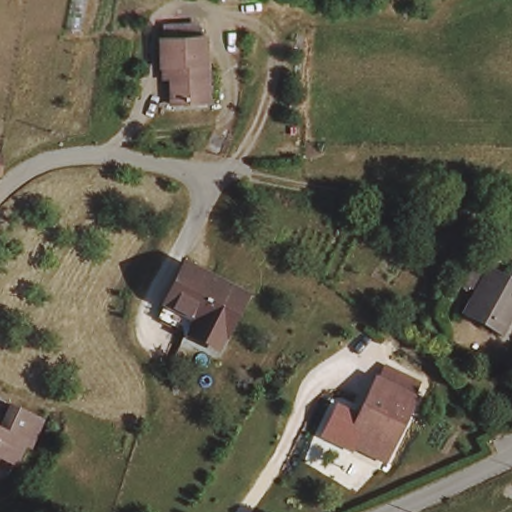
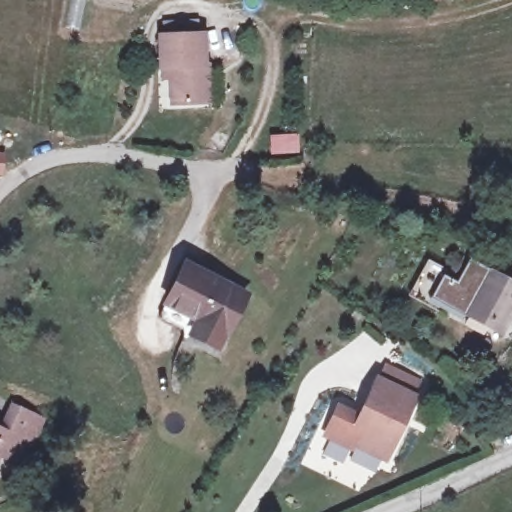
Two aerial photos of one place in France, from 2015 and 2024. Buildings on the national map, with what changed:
unchanged [(155,62),(155,31),(192,30),(193,66),(201,66),(200,100),(167,101),(167,79),(155,79),(155,62)]
unchanged [(180,255),(241,286),(215,338),(153,305),(180,255)]
unchanged [(467,295),(486,260),(512,275),(512,294),(501,313),(496,322),(463,303),(467,295)]
unchanged [(378,470),(347,451),(367,418),(360,412),(377,385),(385,370),(421,392),(412,407),(415,410),(378,470)]
unchanged [(10,398),(42,412),(32,438),(25,435),(16,456),(0,449),(0,423),(10,398)]

